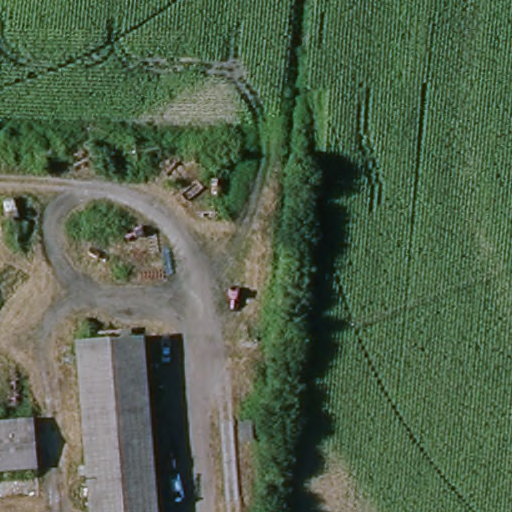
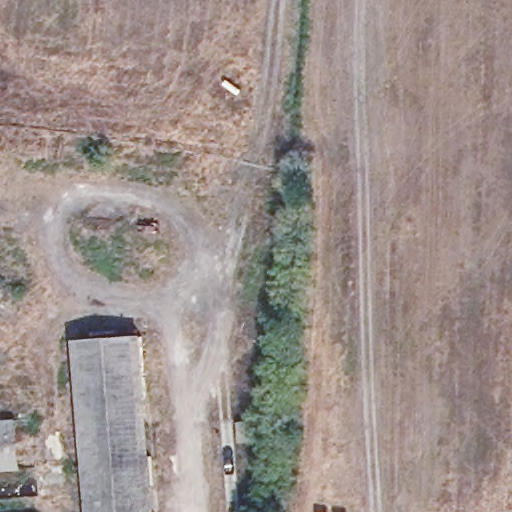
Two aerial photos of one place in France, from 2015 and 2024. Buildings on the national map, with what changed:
unchanged [(92,484),(88,337),(157,335),(157,482),(92,484)]
unchanged [(41,420),(41,471),(0,472),(0,421),(41,420)]
unchanged [(158,512),(93,512),(92,484),(157,482),(158,512)]

